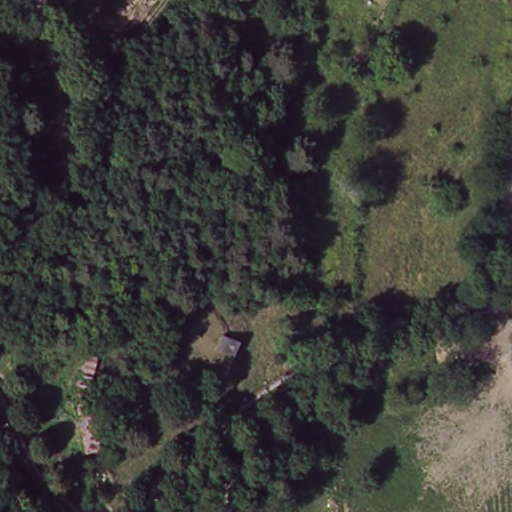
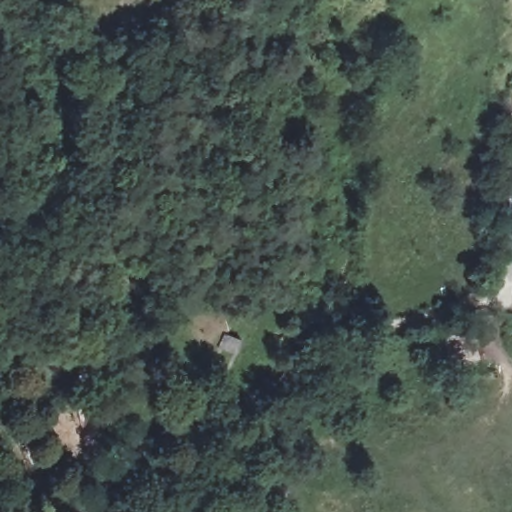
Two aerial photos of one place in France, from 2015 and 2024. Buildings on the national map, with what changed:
unchanged [(452,354),(450,347),(447,334),(468,331),(470,343),(472,351),(452,354)]
unchanged [(241,347),(235,362),(214,353),(220,342),(221,339),(228,342),(241,347)]

